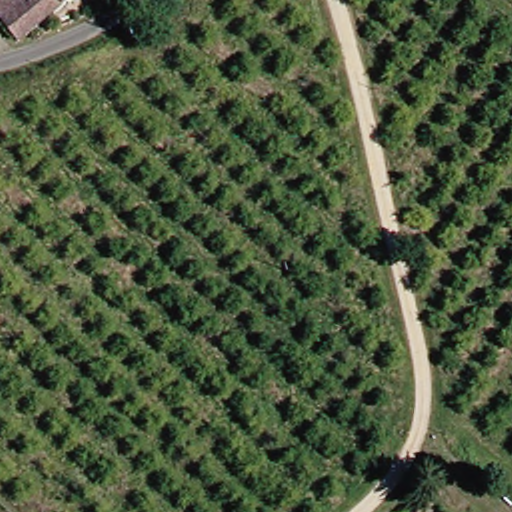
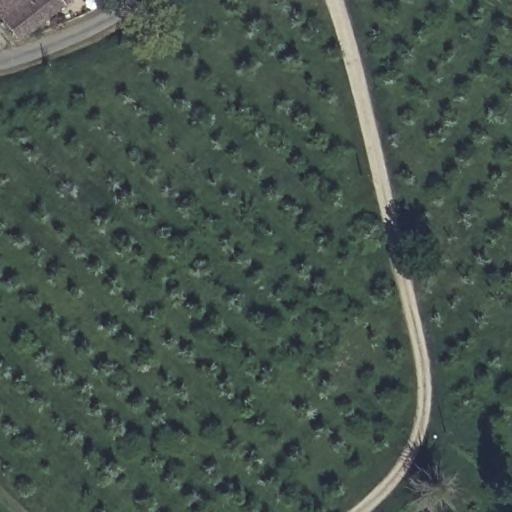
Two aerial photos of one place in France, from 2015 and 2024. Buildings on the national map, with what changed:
unchanged [(0,0),(69,0),(67,1),(17,42),(0,21),(0,0)]

